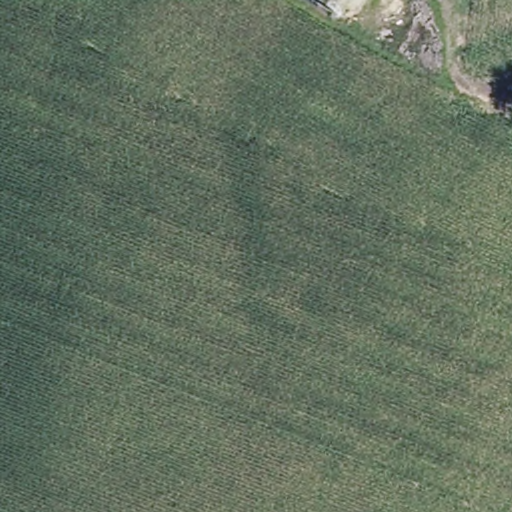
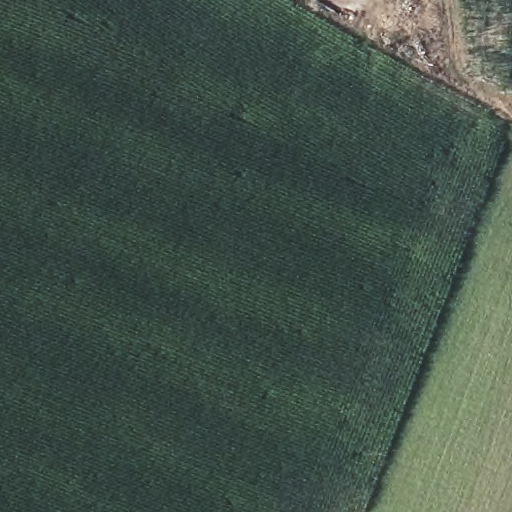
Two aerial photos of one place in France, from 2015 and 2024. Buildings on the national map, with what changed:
[]

